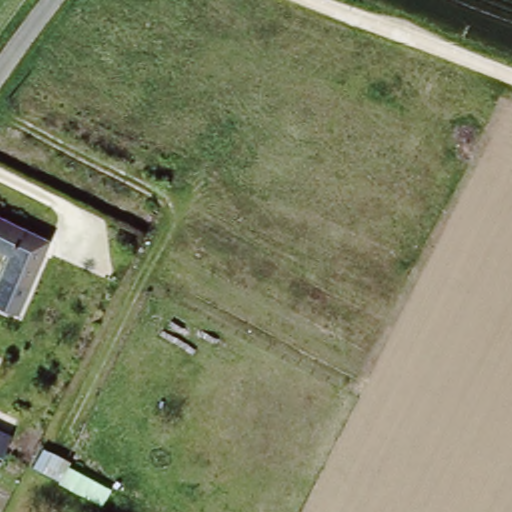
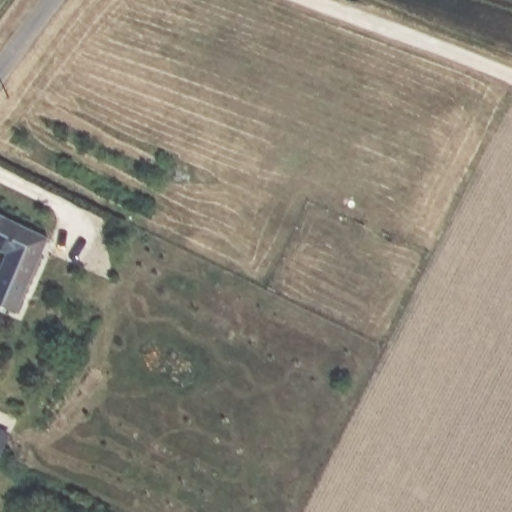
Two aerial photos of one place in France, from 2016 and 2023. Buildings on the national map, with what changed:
unchanged [(43,234),(8,304),(0,299),(0,267),(9,248),(0,243),(0,211),(43,234)]
unchanged [(4,443),(0,452),(0,441),(4,443)]

